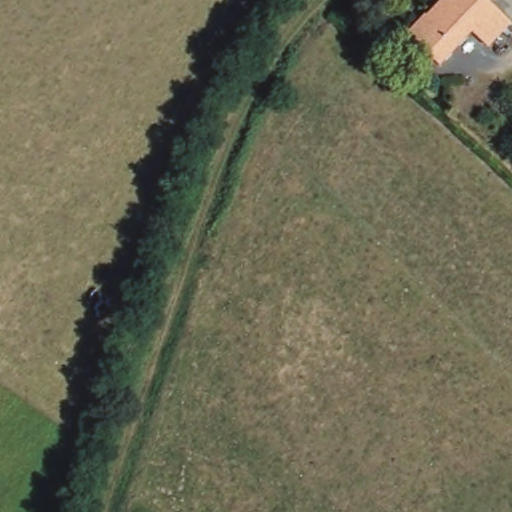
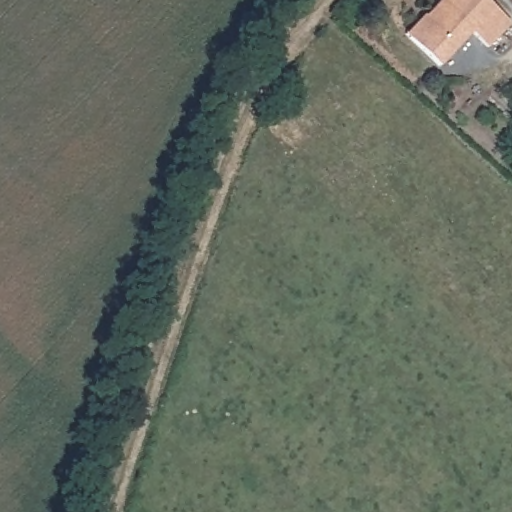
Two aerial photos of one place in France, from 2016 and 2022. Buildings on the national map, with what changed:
unchanged [(410,32),(427,15),(430,17),(445,0),(490,0),(512,21),(512,25),(492,47),(475,31),(442,66),(414,39),(409,34),(410,32)]

